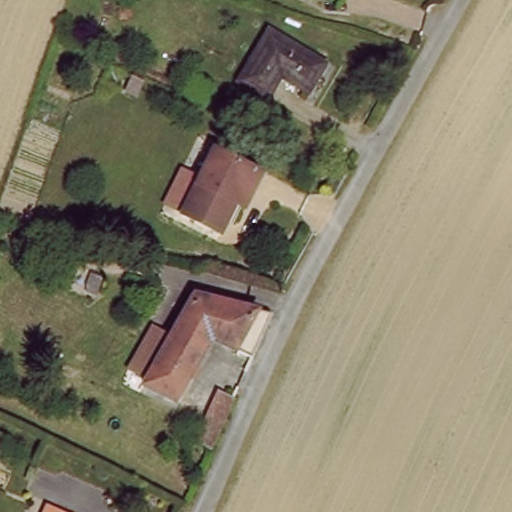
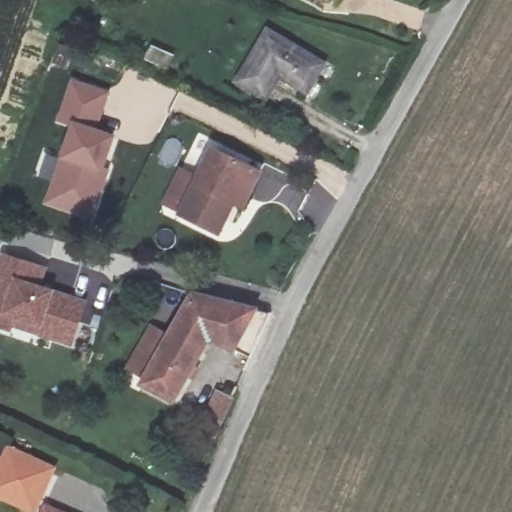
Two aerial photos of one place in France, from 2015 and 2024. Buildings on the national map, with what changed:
unchanged [(327,57),(310,86),(281,71),(271,88),(245,74),(273,25),(327,57)]
new [(61,158),(72,126),(57,121),(73,77),(113,93),(100,129),(118,135),(107,167),(113,170),(95,220),(45,203),(61,158)]
unchanged [(178,209),(207,146),(241,163),(256,170),(241,201),(233,199),(220,227),(178,209)]
new [(50,269),(45,286),(90,300),(73,346),(13,327),(12,332),(0,328),(0,261),(2,253),(50,269)]
unchanged [(135,340),(160,353),(195,291),(268,313),(252,352),(210,337),(175,399),(144,381),(120,367),(135,340)]
unchanged [(230,396),(212,444),(197,436),(200,428),(189,421),(193,412),(205,416),(219,390),(230,396)]
new [(50,471),(33,512),(23,512),(0,503),(0,460),(3,452),(50,471)]
unchanged [(50,512),(46,512),(47,510),(50,512)]

